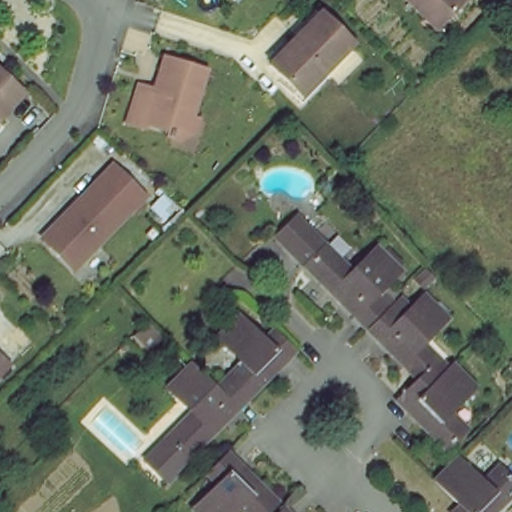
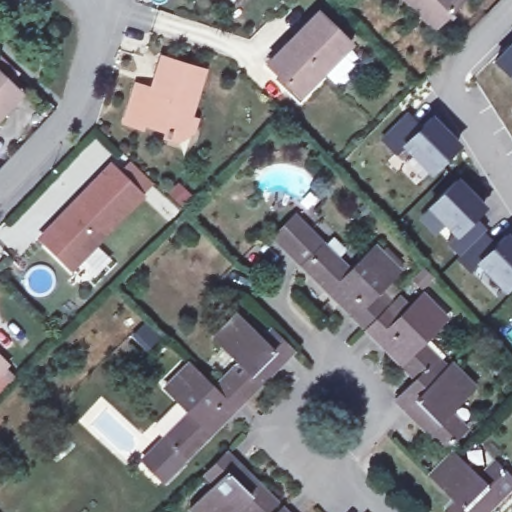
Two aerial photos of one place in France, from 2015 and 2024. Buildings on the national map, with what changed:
unchanged [(406,0),(464,0),(471,6),(441,35),(406,0)]
unchanged [(293,104),(271,81),(276,76),(263,64),(315,13),(346,44),(316,74),(320,78),(293,104)]
new [(492,59),(512,39),(512,80),(492,59)]
unchanged [(188,131),(173,140),(165,138),(161,136),(163,130),(139,123),(138,127),(121,122),(133,84),(148,89),(159,57),(201,70),(185,118),(192,119),(188,131)]
unchanged [(0,116),(0,81),(20,99),(0,116)]
new [(431,174),(400,145),(431,115),(460,144),(431,174)]
unchanged [(51,229),(94,183),(109,168),(116,174),(141,197),(71,272),(45,248),(40,242),(51,229)]
new [(472,268),(446,243),(453,234),(427,207),(457,177),(486,205),(475,218),(498,239),(505,232),(512,239),(512,284),(505,293),(475,263),(472,268)]
unchanged [(276,239),(297,218),(349,272),(375,247),(400,272),(381,292),(390,300),(364,326),(335,297),(276,239)]
unchanged [(368,332),(389,311),(397,319),(422,294),(447,319),(422,344),(445,368),(451,363),(475,386),(448,412),(465,429),(445,449),(421,425),(396,401),(415,379),(391,355),(368,332)]
unchanged [(181,458),(162,439),(188,412),(164,388),(188,364),(211,388),(238,361),(215,338),(239,314),(260,337),(271,328),(273,329),(281,338),(293,350),(276,368),(225,421),(185,461),(181,458)]
unchanged [(0,372),(0,366),(3,369),(0,372)]
unchanged [(142,457),(161,439),(181,458),(160,479),(142,457)]
unchanged [(278,502),(267,512),(243,512),(238,507),(234,512),(192,512),(191,511),(215,484),(206,474),(228,451),(251,474),(278,502)]
unchanged [(456,454),(480,478),(498,461),(512,475),(512,488),(488,512),(449,512),(458,503),(433,478),(456,454)]
unchanged [(286,508),(290,512),(281,512),(286,508)]

